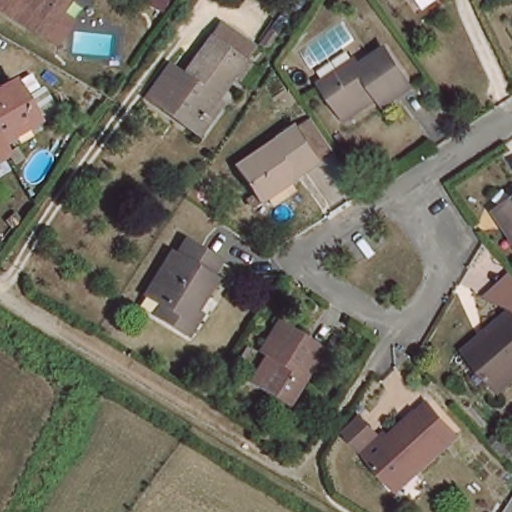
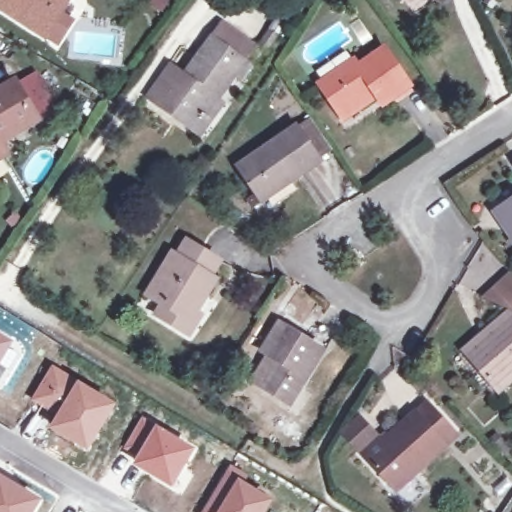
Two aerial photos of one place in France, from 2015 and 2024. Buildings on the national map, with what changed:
unchanged [(43,32),(21,20),(15,30),(0,22),(0,0),(61,0),(62,1),(43,32)]
unchanged [(143,97),(170,59),(184,63),(210,23),(256,46),(196,133),(143,97)]
unchanged [(377,106),(373,100),(349,118),(322,79),(347,61),(358,76),(391,53),(412,81),(377,106)]
unchanged [(37,133),(0,154),(0,97),(13,90),(37,133)]
unchanged [(296,129),(320,166),(269,200),(245,162),(296,129)]
unchanged [(0,171),(0,157),(6,167),(0,171)]
unchanged [(509,159),(512,157),(512,164),(509,159)]
unchanged [(488,209),(512,193),(512,243),(488,209)]
unchanged [(155,282),(174,252),(180,255),(187,242),(220,262),(213,274),(217,277),(182,331),(155,314),(160,306),(146,296),(155,282)]
unchanged [(502,385),(467,347),(512,308),(512,377),(502,385)]
unchanged [(270,312),(314,340),(281,394),(254,376),(270,349),(255,340),(270,312)]
new [(11,347),(21,354),(3,382),(0,380),(0,332),(15,342),(11,347)]
new [(52,364),(76,378),(55,414),(30,398),(52,364)]
new [(55,414),(76,378),(116,402),(87,452),(47,427),(55,414)]
unchanged [(388,479),(362,451),(380,435),(385,439),(426,400),(455,433),(413,470),(396,487),(388,479)]
unchanged [(358,445),(344,429),(362,413),(376,429),(358,445)]
new [(142,415),(195,448),(171,487),(131,463),(135,457),(121,449),(142,415)]
new [(229,464),(250,475),(247,479),(275,498),(266,512),(201,512),(229,464)]
unchanged [(512,481),(512,487),(502,503),(501,504),(490,491),(503,470),(512,481)]
new [(34,512),(0,512),(0,474),(42,498),(34,512)]

